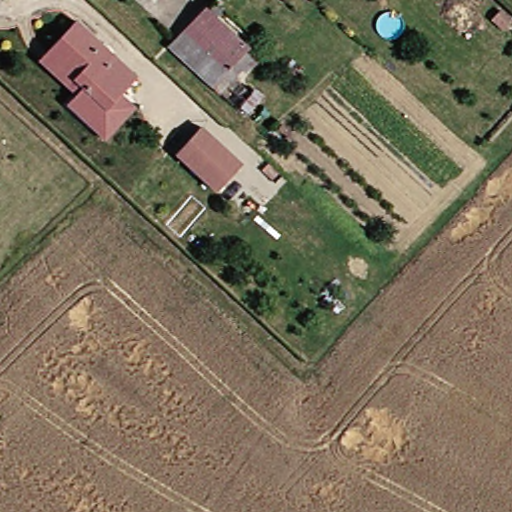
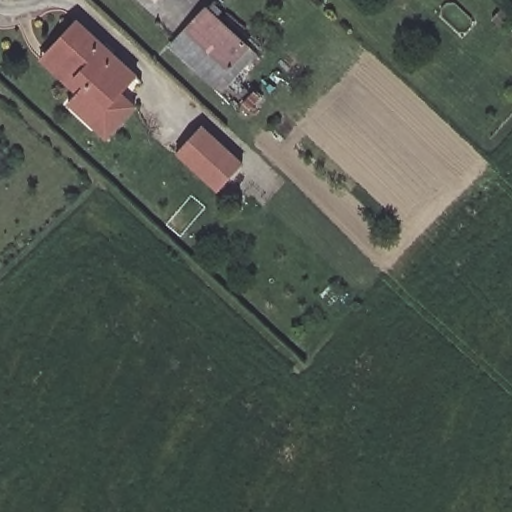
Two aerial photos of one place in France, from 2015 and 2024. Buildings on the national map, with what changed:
unchanged [(227,91),(222,96),(215,88),(174,51),(179,46),(210,12),(251,50),(259,58),(227,91)]
unchanged [(110,139),(95,126),(71,105),(80,94),(44,61),(50,53),(80,21),(139,76),(125,92),(139,106),(110,139)]
unchanged [(204,126),(244,166),(219,192),(175,153),(204,126)]

